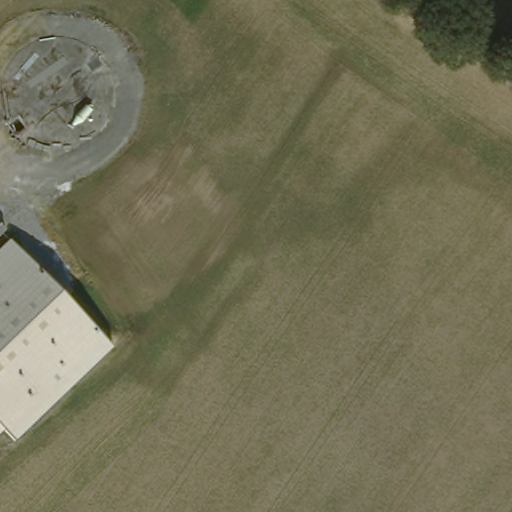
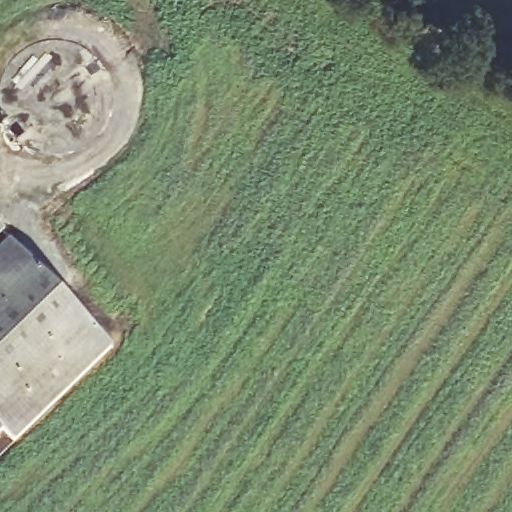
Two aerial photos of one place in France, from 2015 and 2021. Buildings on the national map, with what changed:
unchanged [(9,445),(0,436),(0,246),(4,242),(109,351),(9,445)]

